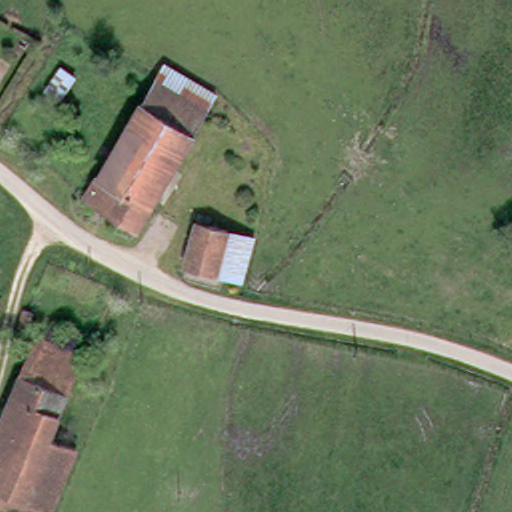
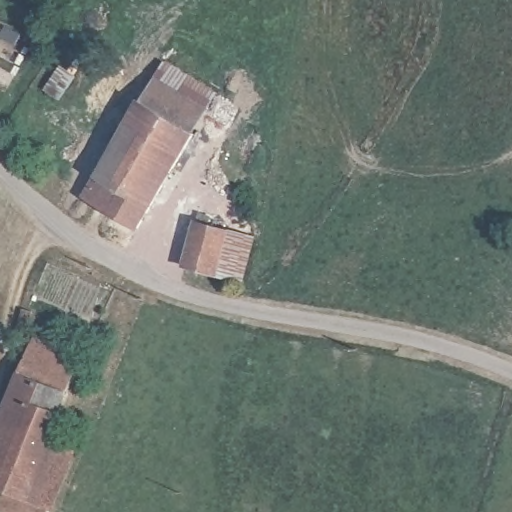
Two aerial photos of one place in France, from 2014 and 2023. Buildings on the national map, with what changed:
unchanged [(166,62),(218,88),(208,105),(179,90),(158,79),(166,62)]
unchanged [(55,77),(68,85),(58,106),(44,99),(55,77)]
unchanged [(179,90),(208,105),(196,129),(146,101),(158,79),(179,90)]
unchanged [(146,101),(196,129),(144,227),(94,199),(146,101)]
unchanged [(233,232),(219,276),(194,269),(206,225),(233,232)]
unchanged [(219,276),(233,232),(242,234),(256,237),(241,282),(236,281),(219,276)]
unchanged [(11,308),(0,325),(0,299),(11,308)]
unchanged [(35,337),(17,330),(24,310),(43,317),(35,337)]
unchanged [(58,436),(83,447),(56,512),(2,512),(11,492),(0,487),(0,452),(48,340),(91,359),(58,436)]

